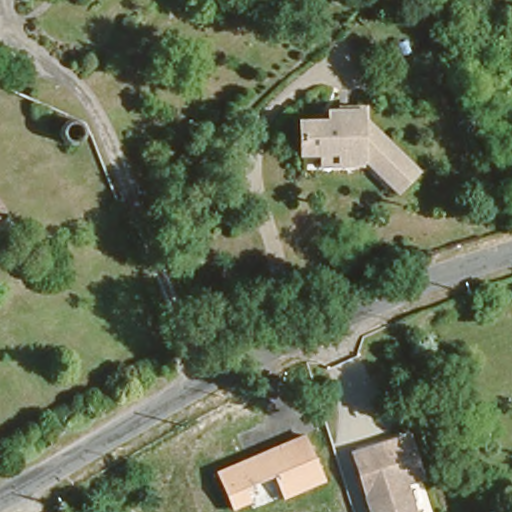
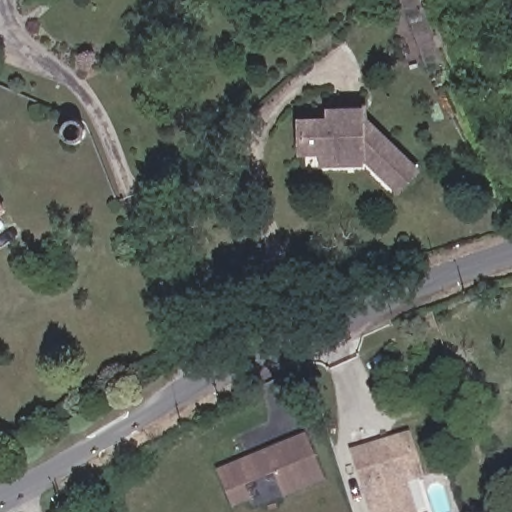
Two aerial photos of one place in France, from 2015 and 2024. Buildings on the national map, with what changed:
unchanged [(317,166),(317,149),(293,150),(291,118),(321,117),(322,106),(356,106),(357,114),(368,115),(415,169),(393,189),(359,153),(352,159),(335,161),(335,165),(317,166)]
unchanged [(2,217),(0,218),(0,212),(2,217)]
unchanged [(273,477),(245,488),(251,503),(232,511),(216,471),(305,434),(326,482),(283,500),(273,477)]
unchanged [(405,489),(412,512),(368,512),(350,458),(403,442),(418,485),(405,489)]

